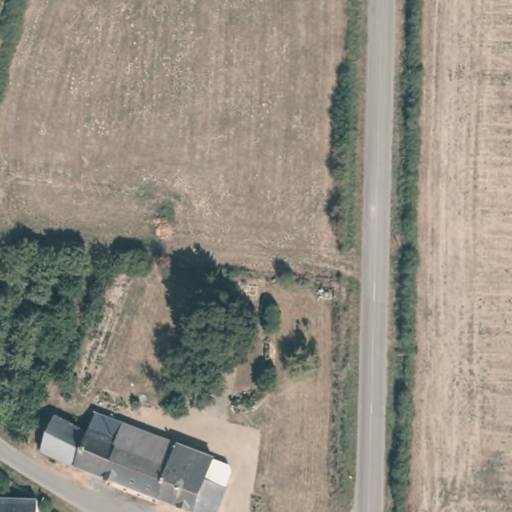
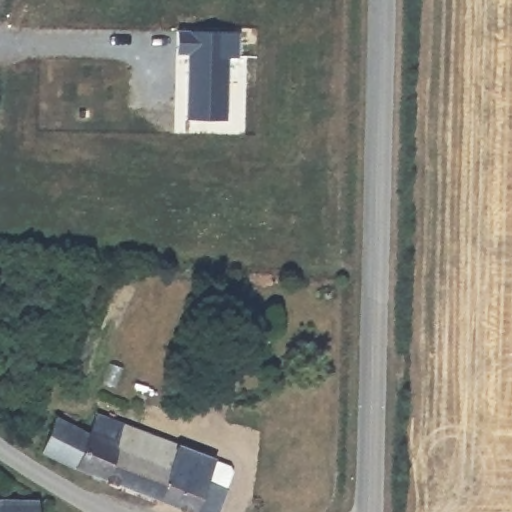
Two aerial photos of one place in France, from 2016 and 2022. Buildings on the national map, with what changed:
new [(228,57),(227,119),(185,118),(187,54),(174,53),(175,29),(240,30),(238,57),(228,57)]
unchanged [(59,424),(118,446),(126,427),(226,463),(220,485),(229,488),(221,512),(192,512),(48,458),(44,456),(59,424)]
unchanged [(0,512),(0,499),(38,500),(39,512),(0,512)]

